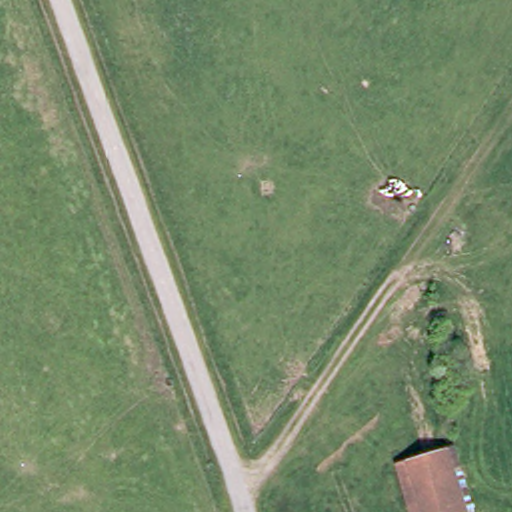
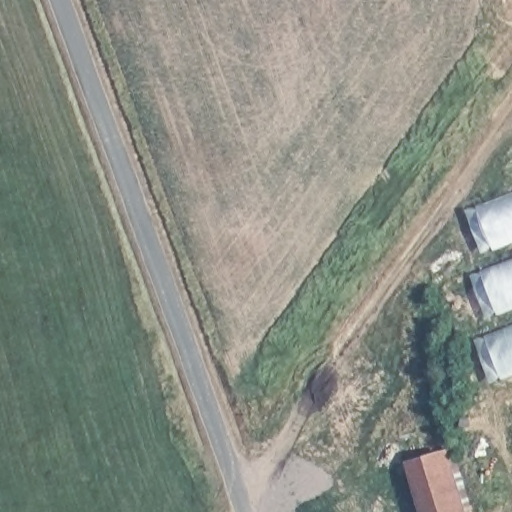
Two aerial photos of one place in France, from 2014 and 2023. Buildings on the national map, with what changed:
new [(476,205),(512,191),(512,242),(493,249),(476,205)]
new [(479,271),(512,258),(512,308),(496,314),(479,271)]
new [(484,336),(512,325),(512,374),(500,379),(484,336)]
unchanged [(466,508),(455,512),(437,512),(419,463),(446,453),(466,508)]
unchanged [(419,463),(437,512),(418,512),(401,470),(419,463)]

